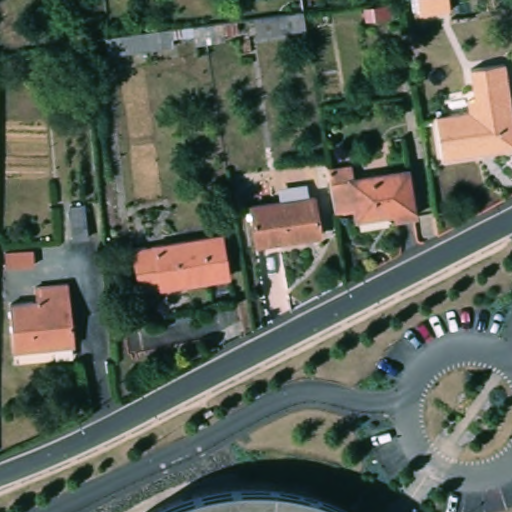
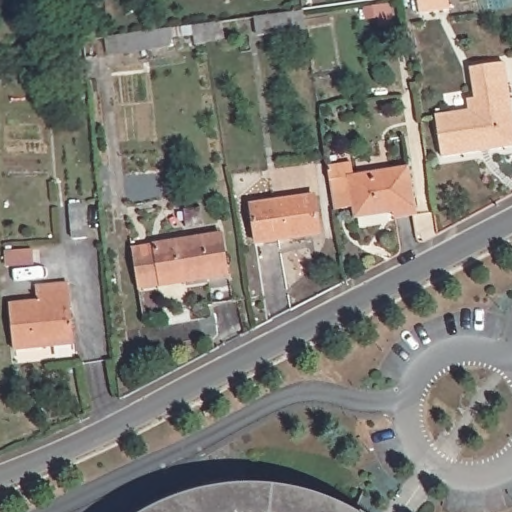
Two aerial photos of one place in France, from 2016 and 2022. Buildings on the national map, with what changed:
unchanged [(421,12),(419,0),(449,0),(451,9),(421,12)]
unchanged [(258,15),(307,10),(310,28),(259,34),(258,15)]
unchanged [(108,36),(225,22),(226,41),(195,43),(194,35),(173,39),(171,47),(110,58),(108,36)]
unchanged [(512,111),(512,148),(442,159),(436,116),(470,111),(469,100),(476,98),(472,74),(506,69),(512,111)]
unchanged [(401,165),(407,206),(373,211),(367,171),(401,165)]
unchanged [(340,175),(367,171),(373,211),(346,215),(340,175)]
unchanged [(315,194),(321,232),(256,242),(250,204),(315,194)]
unchanged [(229,302),(209,305),(206,278),(183,280),(182,275),(158,278),(156,254),(152,255),(132,256),(131,242),(150,241),(222,235),(229,302)]
unchanged [(6,257),(32,254),(34,268),(8,272),(6,257)]
unchanged [(14,350),(9,303),(39,300),(37,285),(67,281),(76,341),(14,350)]
unchanged [(191,492),(216,486),(244,483),(277,485),(302,489),(331,497),(360,511),(360,512),(144,512),(167,501),(191,492)]

